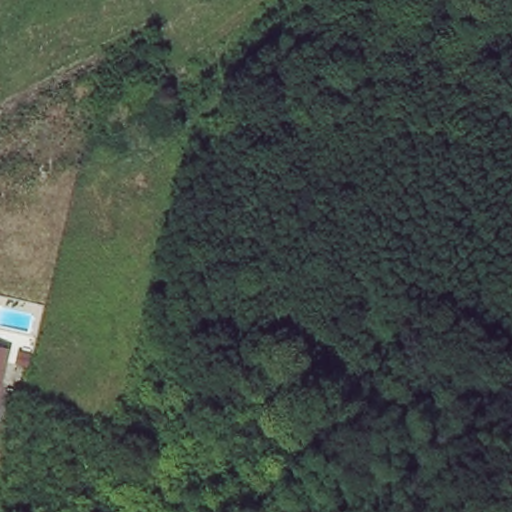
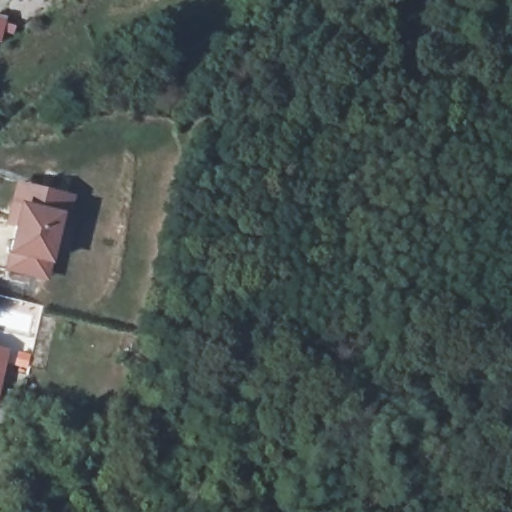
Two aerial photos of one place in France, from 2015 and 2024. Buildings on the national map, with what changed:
new [(8,254),(14,226),(6,225),(16,181),(75,195),(70,220),(63,219),(52,263),(48,281),(4,271),(8,254)]
unchanged [(0,393),(0,349),(11,352),(0,393)]

